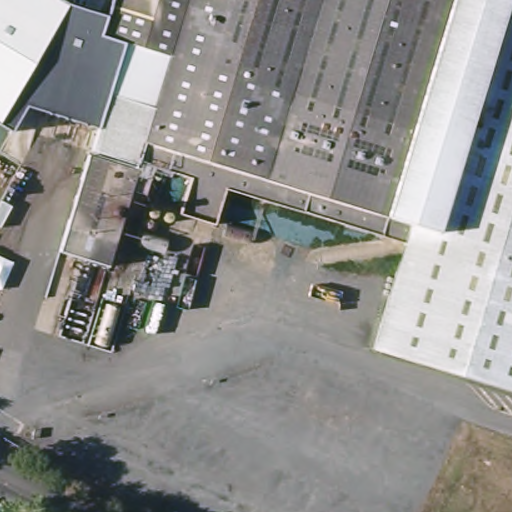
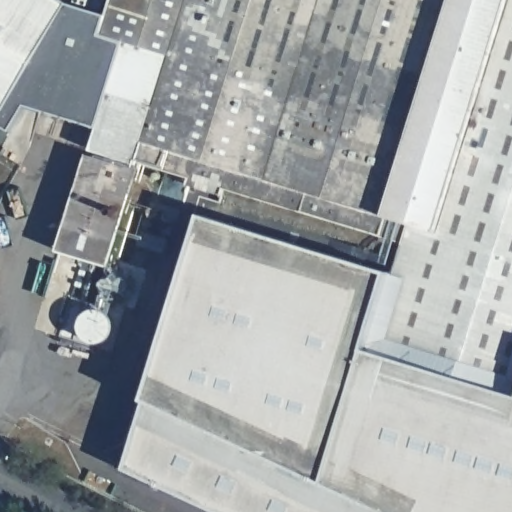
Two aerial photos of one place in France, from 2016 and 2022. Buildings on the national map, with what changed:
unchanged [(112,19),(107,35),(130,43),(102,131),(25,104),(9,130),(0,125),(0,0),(62,0),(67,4),(112,19)]
unchanged [(409,245),(230,189),(218,225),(185,215),(194,179),(143,163),(142,165),(96,151),(130,43),(107,35),(118,0),(512,0),(512,391),(377,349),(409,245)]
unchanged [(143,172),(114,267),(64,252),(93,156),(143,172)]
new [(206,221),(218,225),(230,189),(409,245),(398,280),(377,349),(512,391),(512,512),(221,512),(129,469),(149,399),(206,221)]

